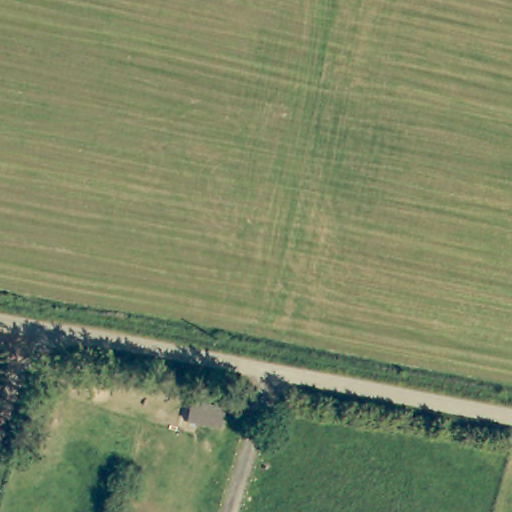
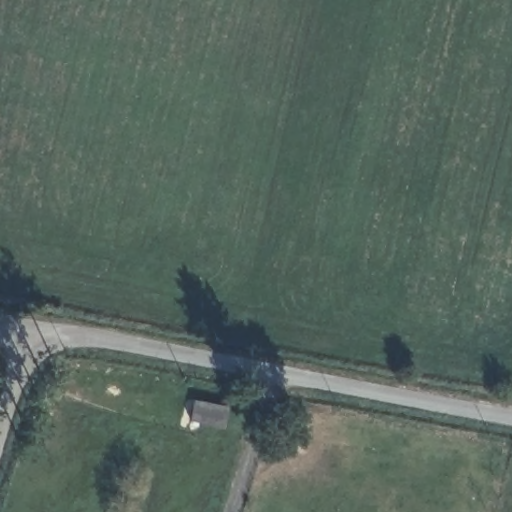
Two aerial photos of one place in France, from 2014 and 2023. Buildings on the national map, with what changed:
unchanged [(232,401),(229,424),(195,418),(199,395),(232,401)]

